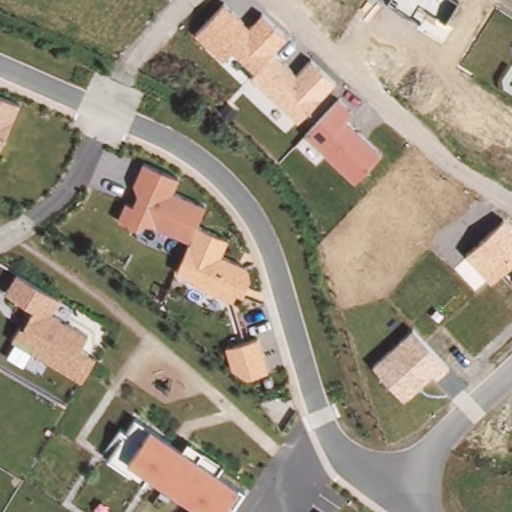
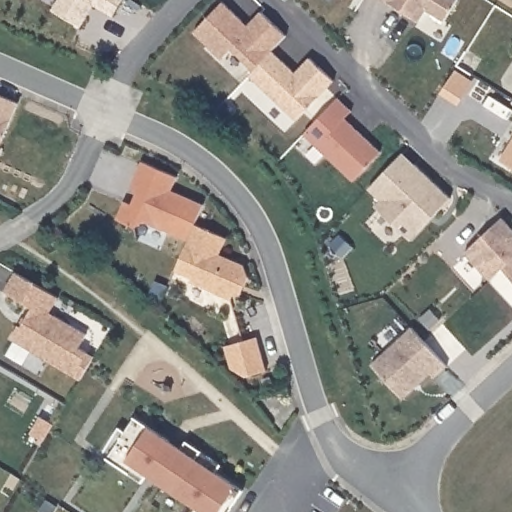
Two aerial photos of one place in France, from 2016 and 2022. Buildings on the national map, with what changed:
new [(113,18),(94,6),(81,28),(51,12),(58,0),(123,0),(113,18)]
unchanged [(460,0),(446,21),(426,12),(418,23),(381,0),(459,0),(460,0)]
unchanged [(333,82),(297,121),(251,76),(254,73),(230,51),(224,59),(194,34),(225,3),(249,24),(261,12),(285,37),(272,53),(297,73),(309,59),(333,82)]
unchanged [(20,102),(0,147),(0,94),(20,102)]
unchanged [(352,111),(345,119),(382,154),(381,156),(354,185),(305,135),(339,100),(352,111)]
new [(512,139),(512,167),(500,158),(512,139)]
new [(403,153),(451,198),(412,242),(375,206),(380,201),(369,189),(403,153)]
unchanged [(234,292),(230,300),(192,285),(193,281),(175,272),(188,241),(142,223),(137,228),(116,219),(122,202),(132,205),(137,190),(133,186),(142,162),(177,175),(172,193),(204,204),(196,225),(229,238),(222,254),(246,266),(248,277),(242,296),(234,292)]
unchanged [(512,229),(512,279),(504,270),(490,282),(465,254),(502,219),(512,229)]
unchanged [(17,271),(61,298),(51,313),(87,335),(80,347),(96,356),(80,380),(11,339),(32,306),(5,291),(17,271)]
unchanged [(448,367),(437,378),(432,375),(403,400),(372,366),(412,328),(448,367)]
unchanged [(231,369),(225,345),(260,339),(268,373),(248,378),(231,369)]
unchanged [(151,475),(142,484),(110,460),(135,418),(150,428),(237,486),(246,492),(231,512),(191,512),(194,507),(151,475)]

